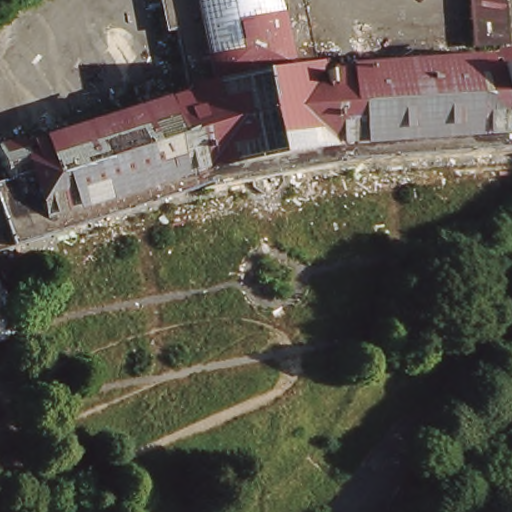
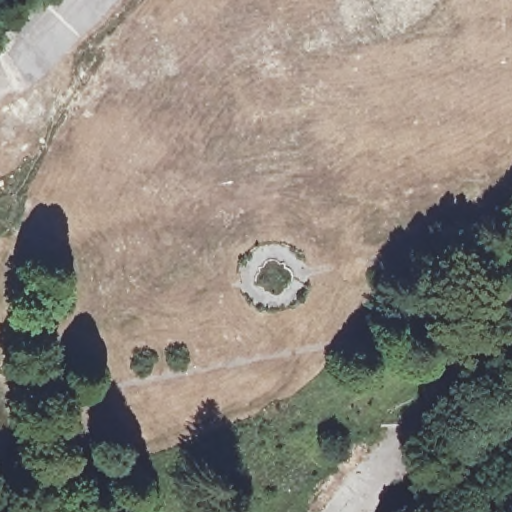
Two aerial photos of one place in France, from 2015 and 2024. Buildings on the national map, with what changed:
demolished [(185,84),(184,81),(187,81),(185,77),(187,77),(177,17),(169,19),(166,0),(302,0),(312,59),(315,59),(316,62),(340,60),(355,59),(483,51),(507,50),(509,79),(505,80),(510,144),(331,154),(331,157),(282,165),(283,171),(277,181),(262,184),(252,177),(250,171),(203,179),(202,176),(12,236),(0,240),(0,160),(7,157),(2,142),(21,136),(22,135),(142,97),(162,91),(185,84)]
demolished [(505,35),(471,36),(469,0),(503,0),(505,35)]
unchanged [(0,137),(21,130),(22,135),(21,136),(2,142),(0,137)]
demolished [(15,325),(0,330),(0,277),(5,294),(15,325)]

